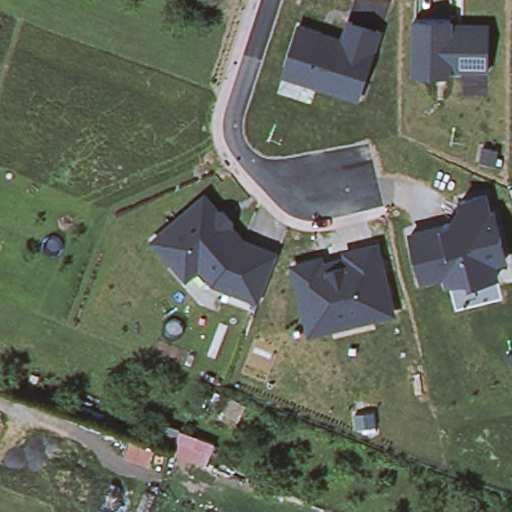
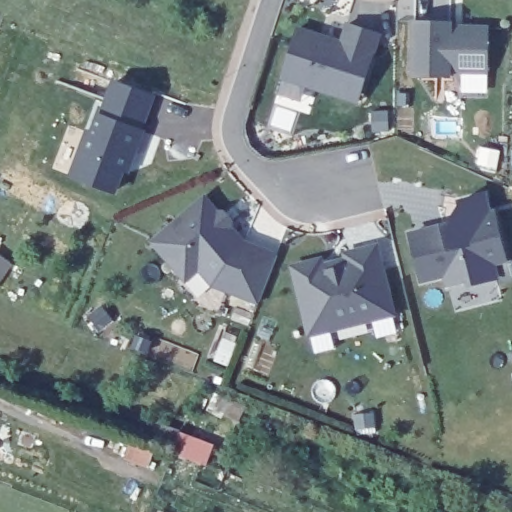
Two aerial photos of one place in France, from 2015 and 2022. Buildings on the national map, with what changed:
unchanged [(451,21),(451,26),(489,27),(488,73),(450,71),(449,76),(414,75),(414,21),(451,21)]
unchanged [(341,41),(346,23),(379,34),(360,101),(279,77),(299,26),(341,41)]
new [(85,128),(91,130),(98,112),(113,79),(156,95),(116,195),(68,175),(85,128)]
unchanged [(453,214),(459,197),(486,194),(490,210),(497,209),(508,260),(492,264),(496,278),(446,288),(443,277),(421,283),(409,230),(453,214)]
unchanged [(200,197),(212,211),(218,212),(227,221),(226,228),(238,242),(273,255),(255,302),(208,284),(194,268),(181,279),(148,241),(200,197)]
unchanged [(321,256),(323,263),(341,257),(341,252),(376,244),(394,315),(308,337),(289,267),(321,256)]
unchanged [(223,413),(228,398),(244,406),(237,421),(223,413)]
unchanged [(170,453),(173,444),(157,441),(161,424),(180,429),(180,433),(215,444),(206,465),(170,453)]
unchanged [(125,458),(131,438),(156,446),(148,466),(125,458)]

